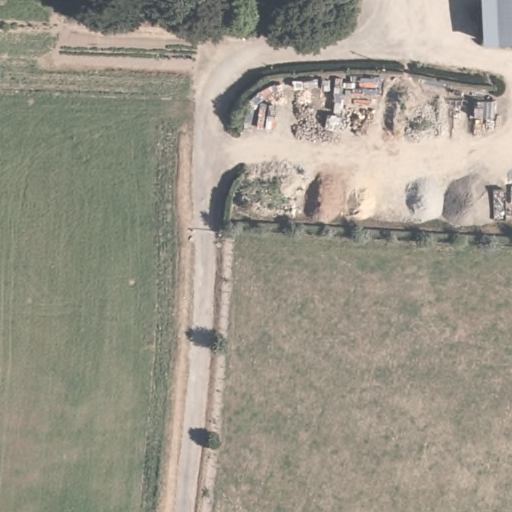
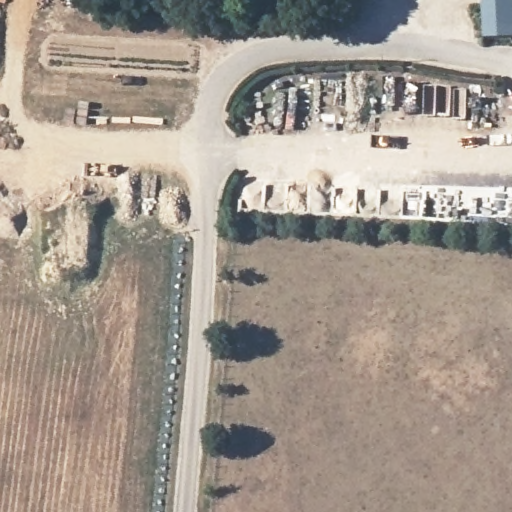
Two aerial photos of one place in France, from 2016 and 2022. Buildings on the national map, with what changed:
unchanged [(485,42),(483,0),(512,0),(512,41),(485,42)]

